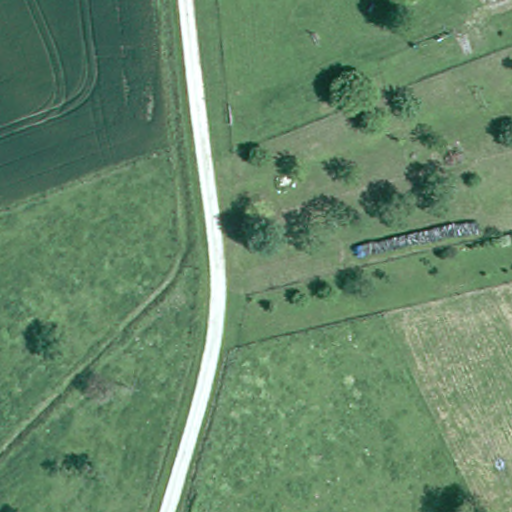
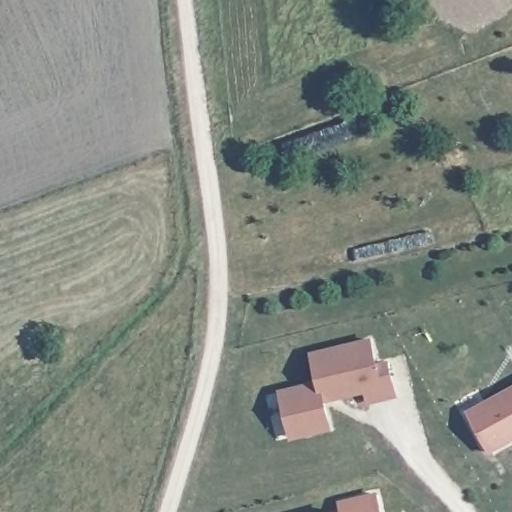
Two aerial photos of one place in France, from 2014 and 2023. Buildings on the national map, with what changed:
new [(395,394),(365,401),(363,393),(325,402),(330,430),(287,439),(276,391),(315,382),(308,351),(370,337),(376,362),(388,359),(395,394)]
new [(464,409),(512,384),(512,439),(487,452),(464,409)]
new [(377,495),(381,512),(343,512),(340,503),(377,495)]

